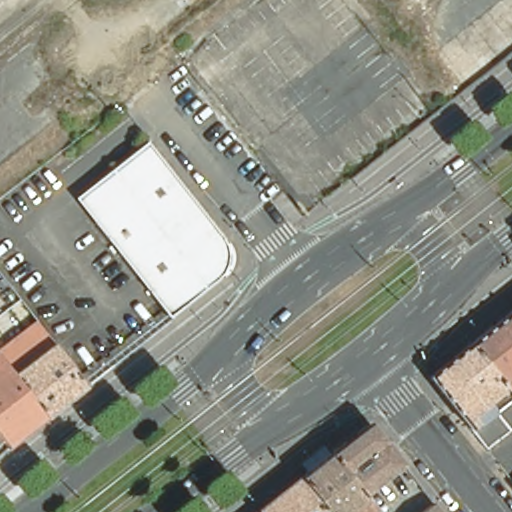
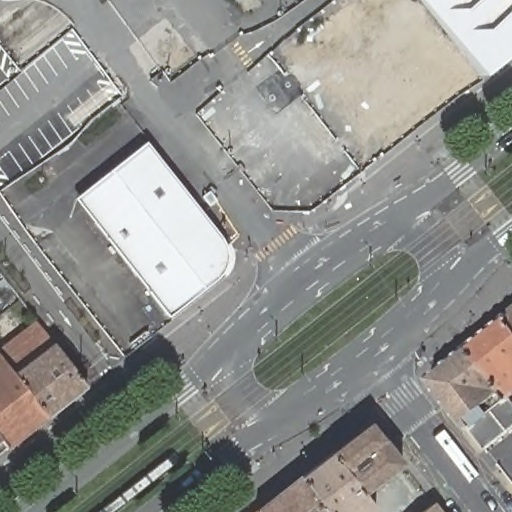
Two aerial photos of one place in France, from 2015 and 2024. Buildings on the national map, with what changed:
new [(420,0),(512,0),(512,51),(481,76),(420,0)]
unchanged [(153,142),(229,237),(231,241),(234,247),(235,252),(235,257),(234,263),(232,269),(229,276),(223,281),(176,318),(82,199),(153,142)]
unchanged [(508,315),(512,311),(512,321),(508,315)]
unchanged [(508,315),(512,321),(512,397),(470,345),(508,315)]
unchanged [(38,407),(15,377),(7,368),(0,358),(0,349),(35,322),(46,337),(53,347),(59,353),(85,387),(46,417),(38,407)]
unchanged [(470,345),(512,397),(512,398),(512,428),(486,449),(485,448),(485,447),(470,430),(429,377),(470,345)]
unchanged [(6,447),(0,439),(0,358),(7,368),(15,377),(38,407),(46,417),(6,448),(6,447)]
unchanged [(370,423),(403,465),(368,492),(363,496),(330,454),(370,423)]
unchanged [(330,454),(363,496),(376,512),(375,512),(327,512),(300,477),(330,454)]
unchanged [(300,477),(327,512),(258,512),(258,511),(300,477)]
unchanged [(433,504),(439,512),(422,512),(433,504)]
unchanged [(258,511),(258,512),(256,512),(258,511)]

